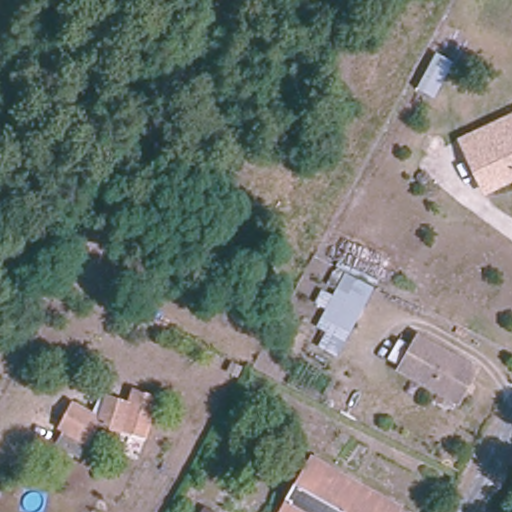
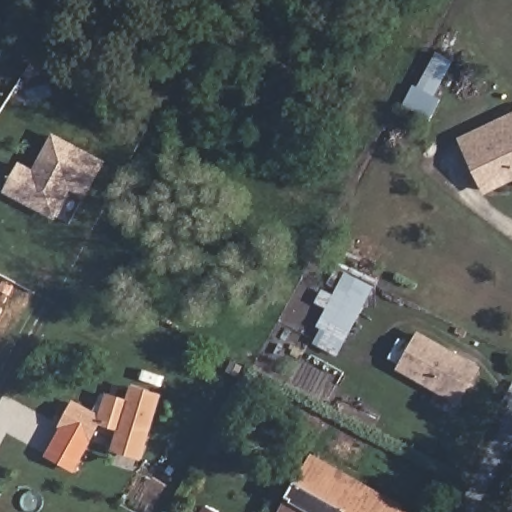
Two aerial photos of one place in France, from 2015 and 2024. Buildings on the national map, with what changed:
new [(412,84),(444,103),(434,121),(401,103),(412,84)]
unchanged [(511,179),(484,192),(458,136),(512,112),(512,180),(511,179)]
new [(18,162),(33,170),(52,132),(105,161),(85,199),(70,191),(55,220),(3,193),(18,162)]
unchanged [(324,283),(336,262),(376,285),(337,357),(315,346),(322,331),(314,326),(335,290),(324,283)]
new [(0,319),(0,306),(5,309),(0,319)]
unchanged [(481,367),(462,404),(399,372),(417,336),(481,367)]
unchanged [(150,439),(99,430),(89,446),(60,429),(74,399),(100,411),(106,394),(129,401),(134,388),(161,397),(150,439)]
unchanged [(293,498),(286,495),(296,479),(304,483),(317,461),(403,506),(413,512),(286,512),(293,498)]
unchanged [(206,507),(216,512),(203,512),(206,507)]

